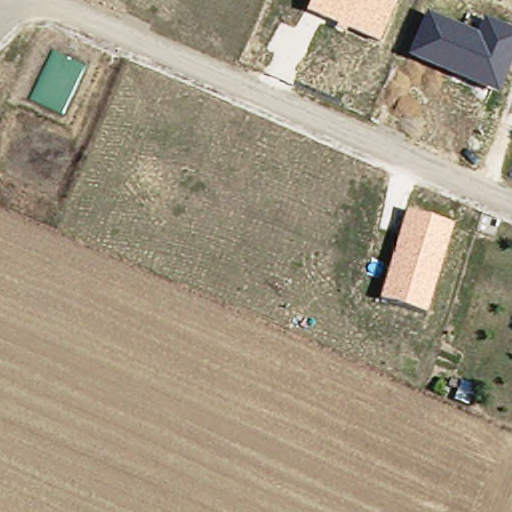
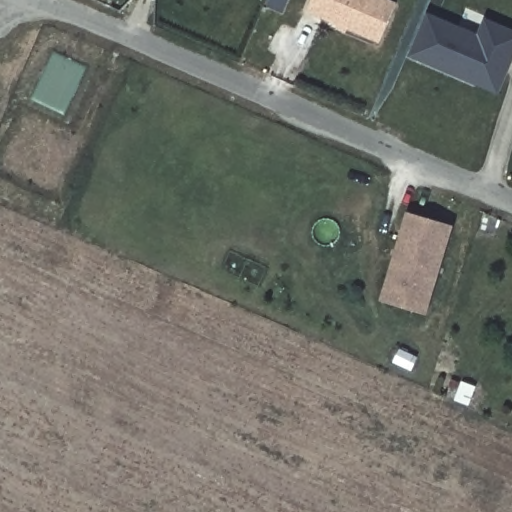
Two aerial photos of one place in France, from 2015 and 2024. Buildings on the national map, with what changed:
unchanged [(397,1),(381,43),(308,11),(312,0),(396,0),(397,1)]
unchanged [(479,32),(485,16),(512,26),(512,65),(501,94),(409,56),(427,11),(479,32)]
unchanged [(454,225),(427,315),(380,300),(406,209),(454,225)]

